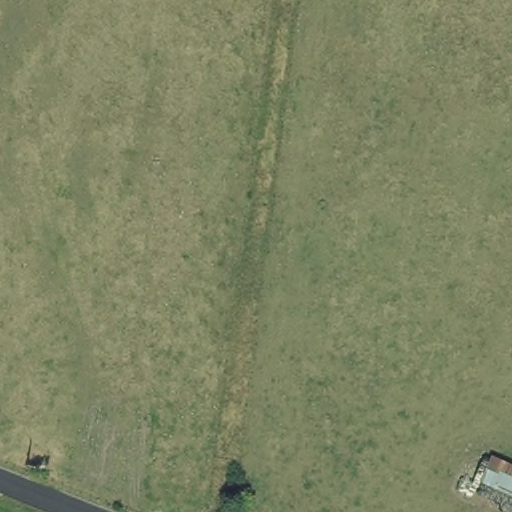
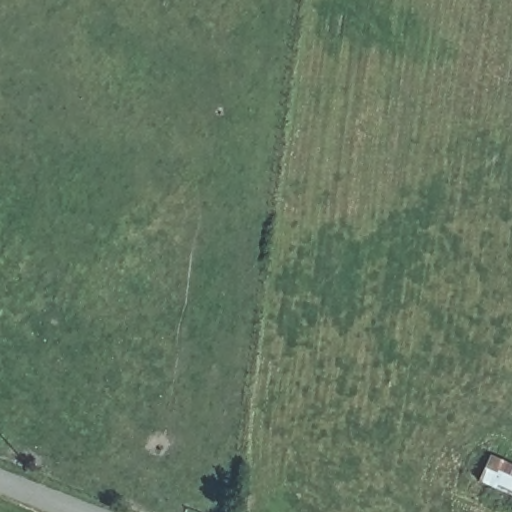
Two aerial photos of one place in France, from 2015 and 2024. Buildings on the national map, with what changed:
unchanged [(512,463),(512,496),(481,483),(493,455),(512,463)]

